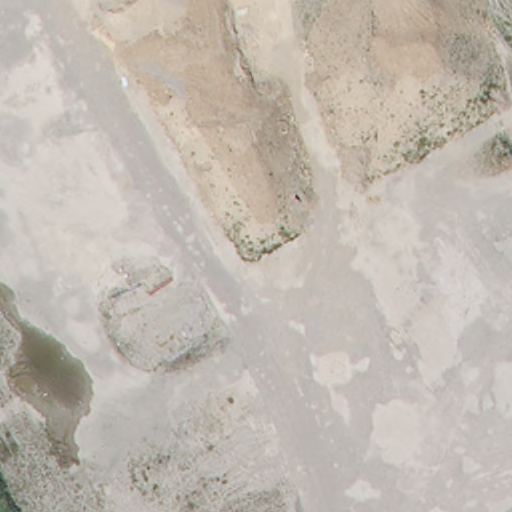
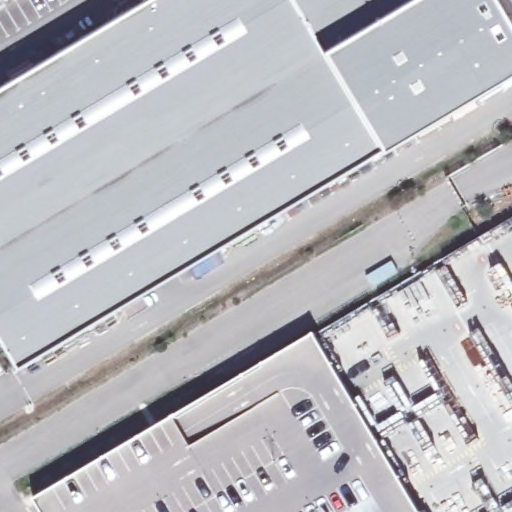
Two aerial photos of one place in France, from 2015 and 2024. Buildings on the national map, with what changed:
new [(492,0),(512,33),(512,72),(14,369),(0,346),(0,86),(144,0),(492,0)]
new [(34,502),(313,337),(416,512),(40,512),(34,502)]

